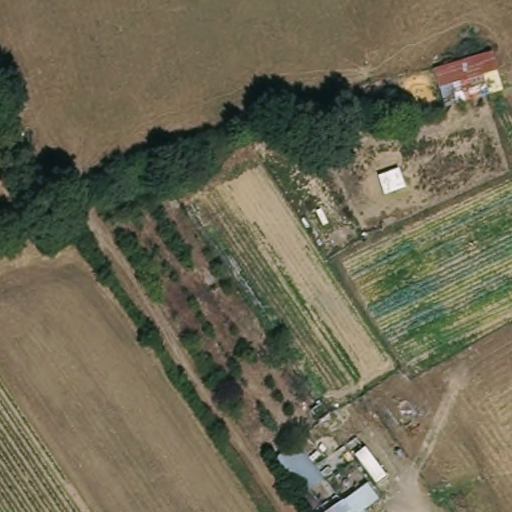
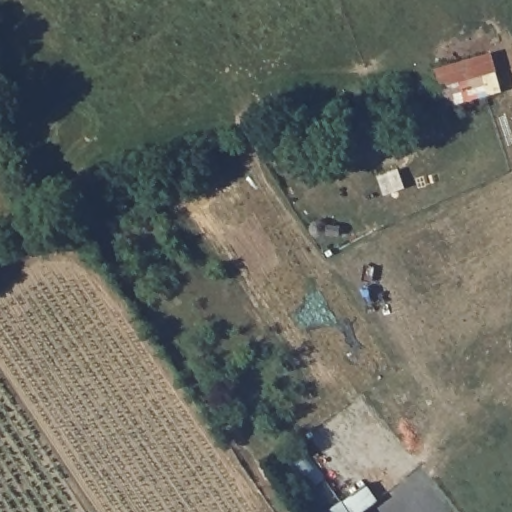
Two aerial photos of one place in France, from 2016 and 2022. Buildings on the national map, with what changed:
unchanged [(445,108),(437,83),(495,68),(502,89),(504,93),(490,97),(445,108)]

